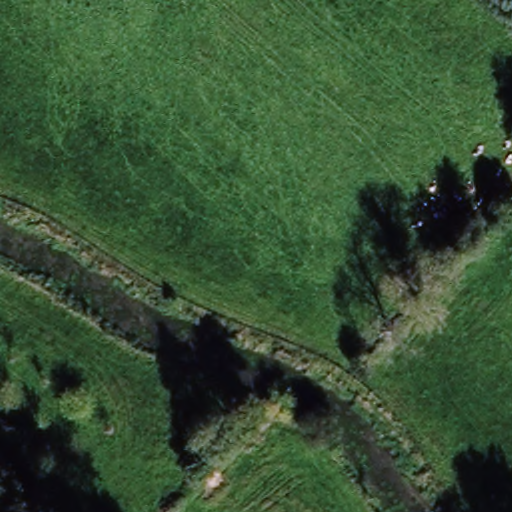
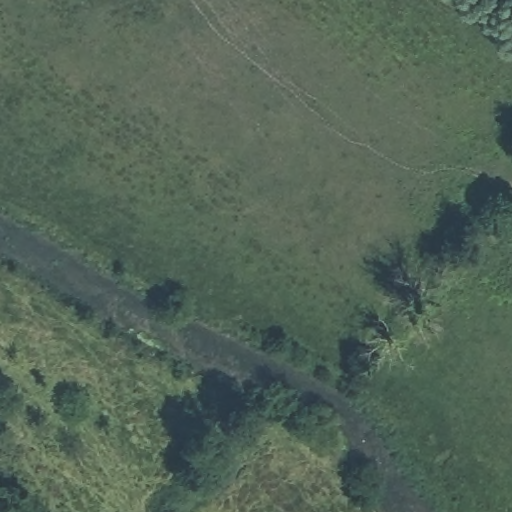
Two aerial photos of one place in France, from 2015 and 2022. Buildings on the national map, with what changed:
[]

